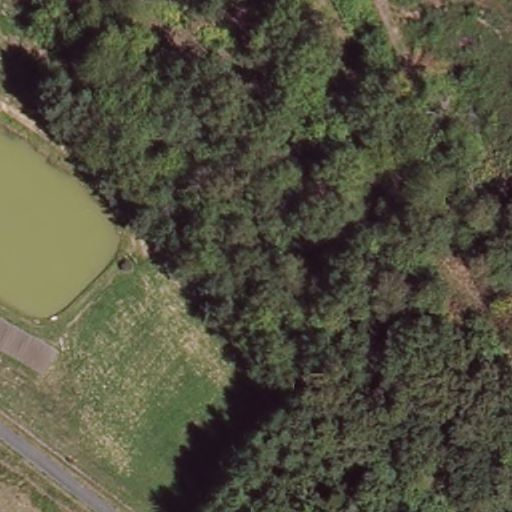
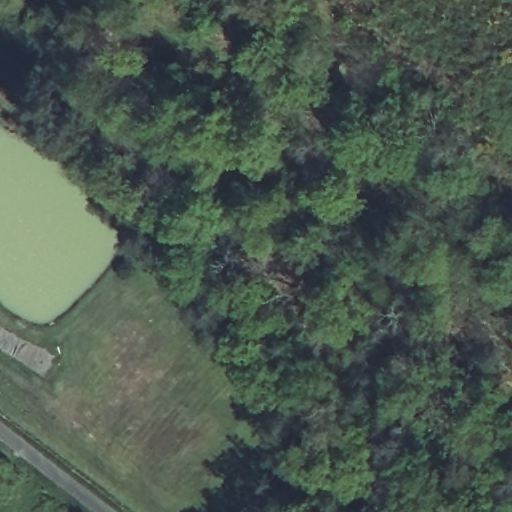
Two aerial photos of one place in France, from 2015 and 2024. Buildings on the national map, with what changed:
[]

